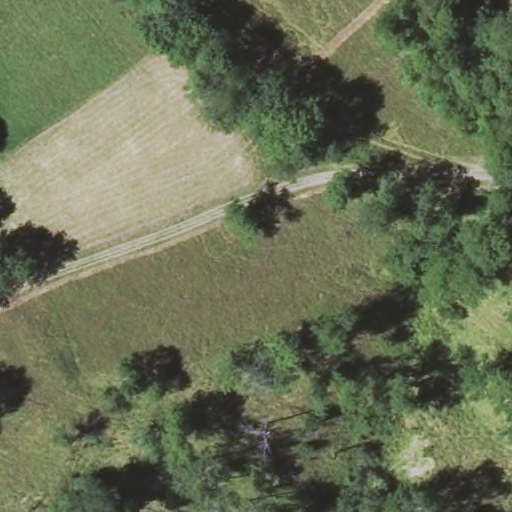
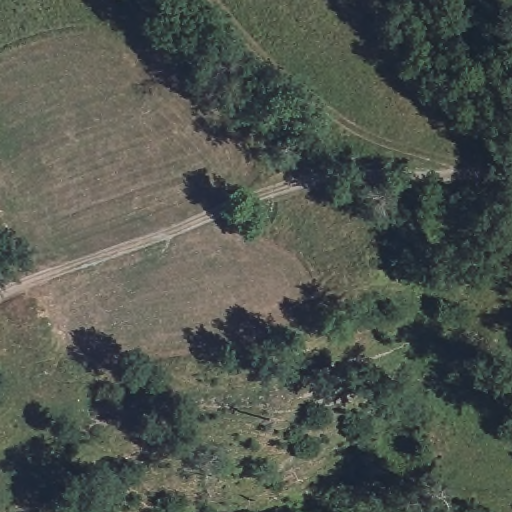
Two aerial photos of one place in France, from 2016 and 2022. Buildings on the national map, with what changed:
[]

